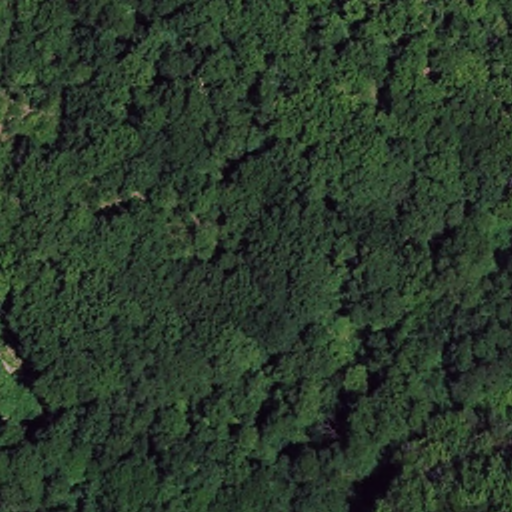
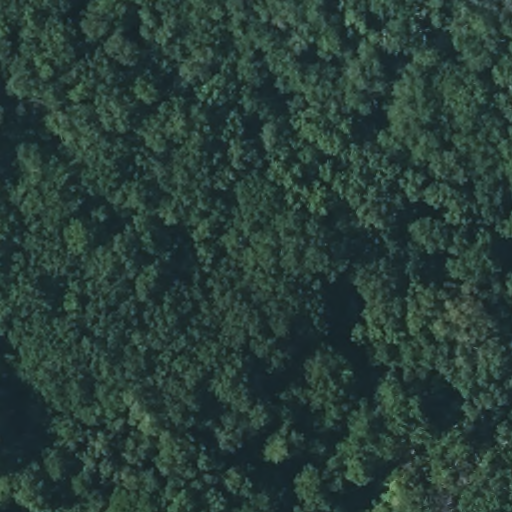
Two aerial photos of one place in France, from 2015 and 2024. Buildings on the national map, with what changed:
[]

